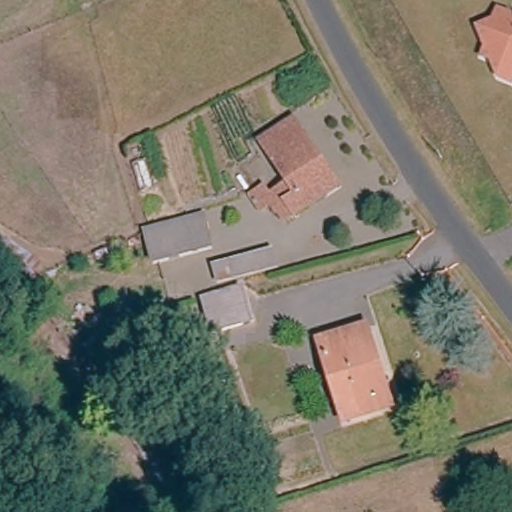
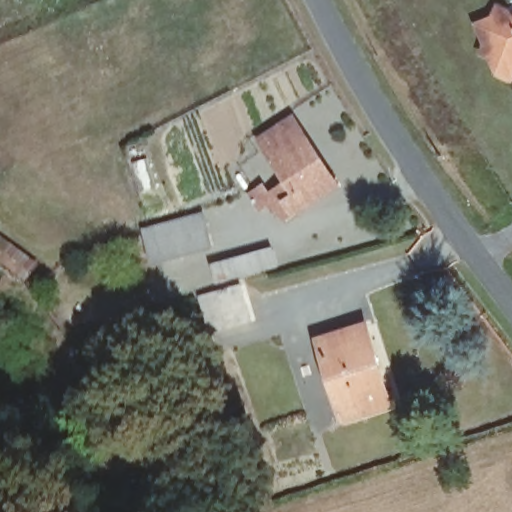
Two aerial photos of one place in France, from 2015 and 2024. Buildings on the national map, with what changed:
unchanged [(496,60),(486,55),(491,46),(482,27),(499,21),(502,9),(512,13),(512,79),(500,76),(496,60)]
unchanged [(292,120),(344,182),(299,220),(282,199),(266,209),(251,193),(265,184),(273,193),(289,180),(262,146),(292,120)]
unchanged [(204,215),(214,251),(159,265),(149,230),(204,215)]
unchanged [(269,252),(273,267),(227,279),(223,264),(269,252)]
unchanged [(198,299),(235,290),(243,327),(208,337),(198,299)]
unchanged [(346,418),(322,342),(360,330),(371,327),(383,367),(393,404),(346,418)]

